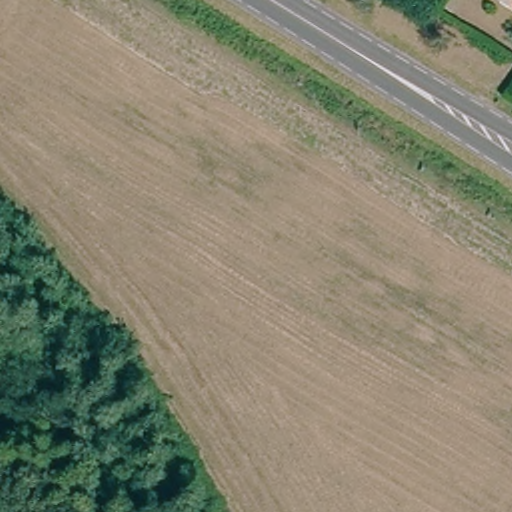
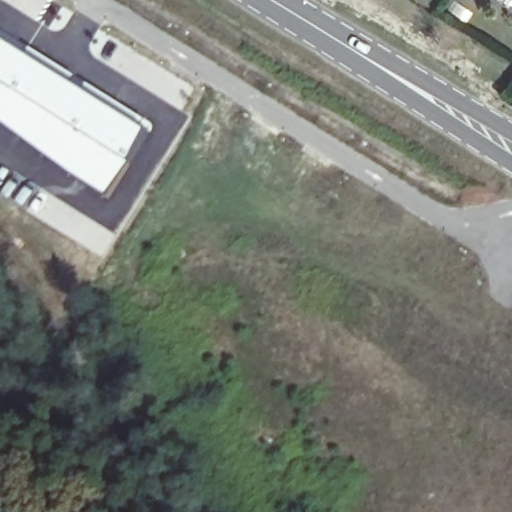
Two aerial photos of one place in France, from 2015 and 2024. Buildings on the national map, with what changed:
new [(29,47),(76,76),(151,124),(128,164),(106,197),(0,124),(0,37),(26,52),(29,47)]

